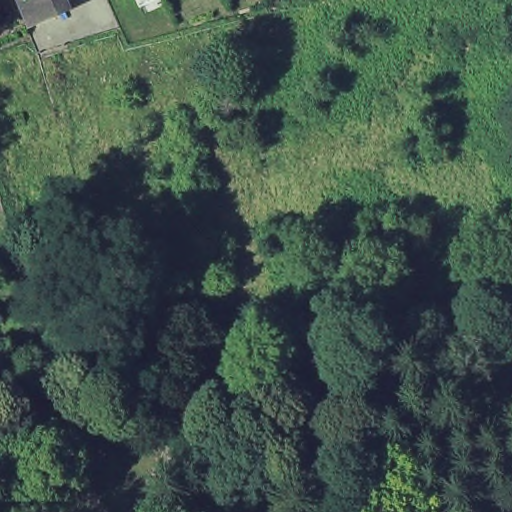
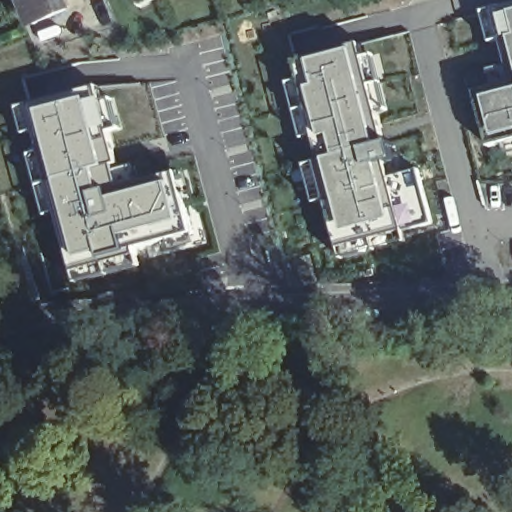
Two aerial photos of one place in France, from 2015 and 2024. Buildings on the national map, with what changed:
unchanged [(17,0),(40,0),(47,17),(27,25),(17,0)]
unchanged [(60,11),(47,17),(40,0),(56,0),(60,11)]
new [(512,4),(512,153),(509,154),(509,142),(490,147),(475,92),(494,87),(489,69),(509,65),(502,39),(492,42),(485,12),(512,4)]
new [(341,56),(340,52),(348,50),(352,62),(364,58),(391,166),(377,168),(381,183),(412,175),(428,230),(330,253),(307,166),(312,166),(305,142),(294,145),(278,89),(288,87),(282,72),(341,56)]
new [(47,218),(37,221),(20,161),(31,157),(27,137),(15,142),(7,112),(86,92),(90,108),(102,105),(110,133),(98,137),(111,176),(129,171),(131,187),(180,173),(194,236),(189,237),(192,249),(162,257),(160,242),(134,249),(141,268),(67,288),(47,218)]

